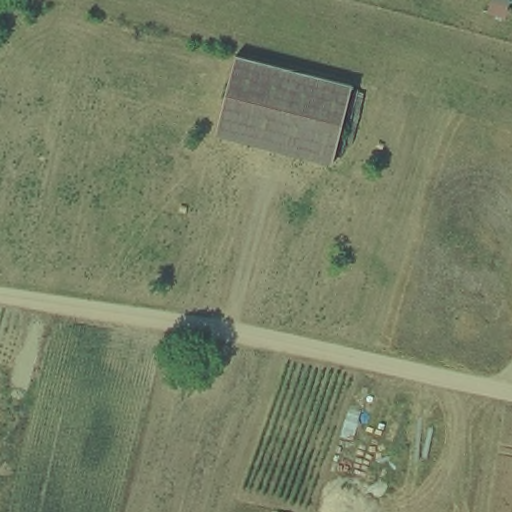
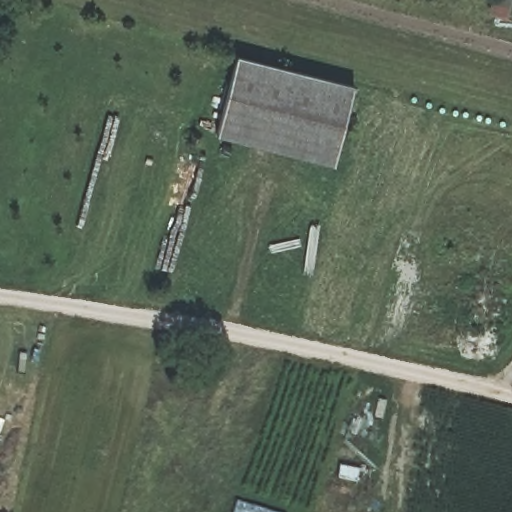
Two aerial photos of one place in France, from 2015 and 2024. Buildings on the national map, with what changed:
unchanged [(510,20),(492,15),(496,0),(512,0),(512,14),(510,20)]
unchanged [(355,85),(333,166),(220,134),(223,120),(241,55),(355,85)]

